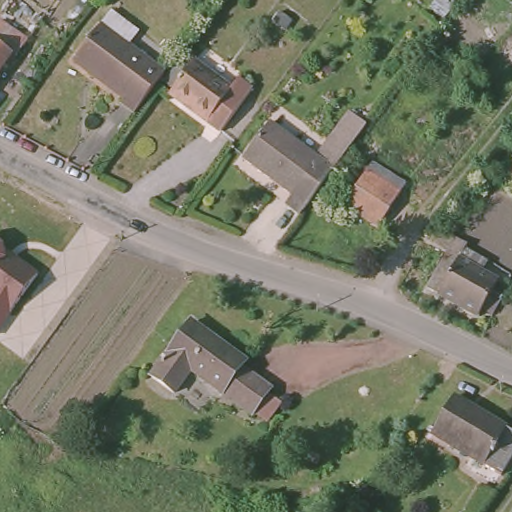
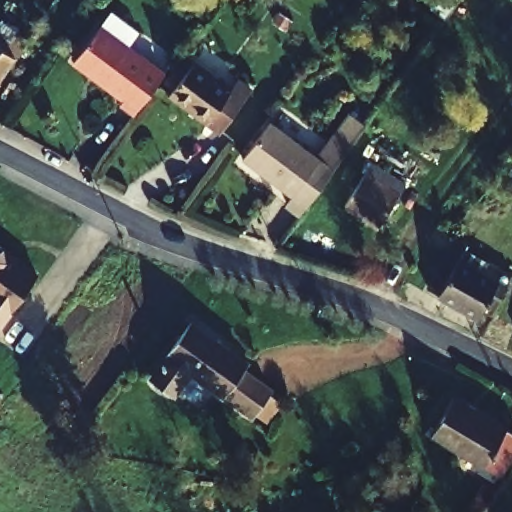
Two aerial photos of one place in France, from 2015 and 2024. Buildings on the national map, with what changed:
unchanged [(118,103),(123,97),(75,62),(113,12),(141,34),(129,49),(165,76),(135,117),(118,103)]
unchanged [(30,46),(0,85),(0,29),(2,26),(30,46)]
unchanged [(192,67),(228,95),(231,90),(244,101),(219,135),(170,98),(192,67)]
unchanged [(355,134),(306,203),(304,205),(244,159),(269,123),(315,156),(346,117),(360,127),(355,134)]
unchanged [(512,166),(512,182),(504,177),(512,166)]
unchanged [(405,190),(374,231),(341,209),(373,167),(405,190)]
unchanged [(4,245),(4,255),(38,276),(0,335),(0,242),(4,245)]
unchanged [(474,258),(468,266),(506,291),(484,325),(434,293),(461,248),(474,258)]
unchanged [(244,365),(239,371),(266,392),(248,416),(188,372),(173,390),(151,371),(188,323),(244,365)]
unchanged [(512,460),(503,476),(433,437),(454,405),(512,437),(512,460)]
unchanged [(479,512),(463,512),(482,488),(491,496),(479,512)]

